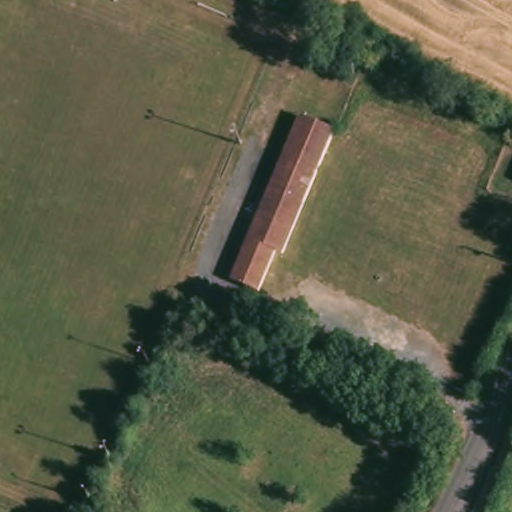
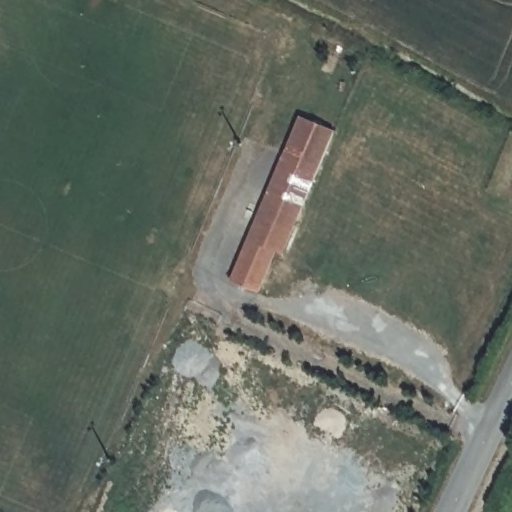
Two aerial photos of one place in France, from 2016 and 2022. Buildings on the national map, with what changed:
unchanged [(315,179),(295,222),(280,257),(272,254),(255,294),(232,284),(226,281),(234,264),(252,226),(269,187),(282,159),(287,147),(299,119),(311,125),(334,136),(315,179)]

